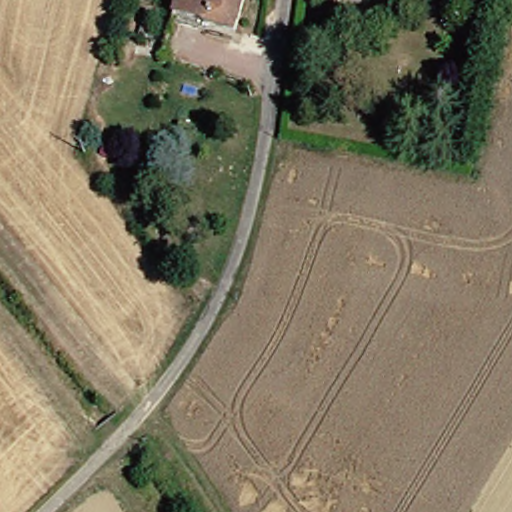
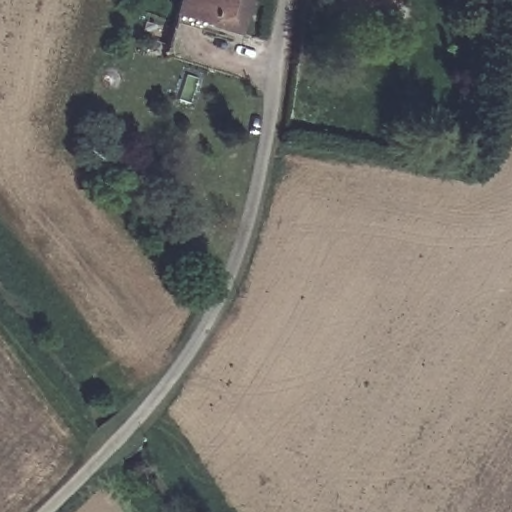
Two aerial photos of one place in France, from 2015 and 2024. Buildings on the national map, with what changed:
unchanged [(183,12),(187,0),(254,0),(244,31),(183,12)]

